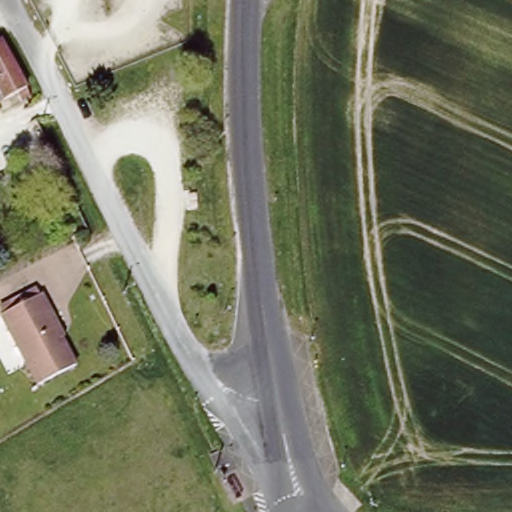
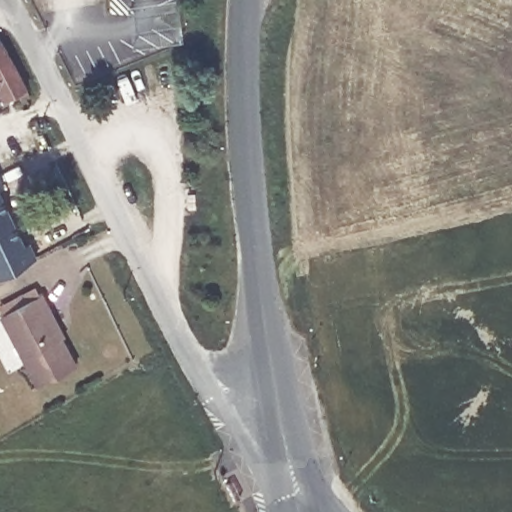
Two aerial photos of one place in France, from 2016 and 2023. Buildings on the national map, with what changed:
unchanged [(5,36),(34,94),(27,98),(23,89),(9,96),(0,78),(0,38),(5,36)]
new [(3,187),(0,188),(0,180),(3,187)]
new [(0,275),(0,194),(24,244),(29,240),(36,255),(0,275)]
unchanged [(44,290),(54,309),(49,312),(76,362),(40,382),(4,313),(44,290)]

